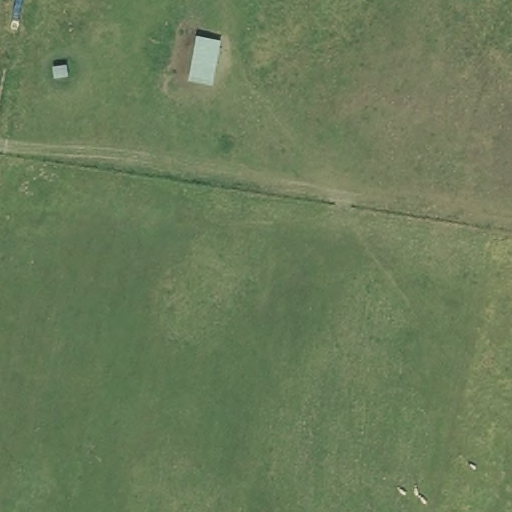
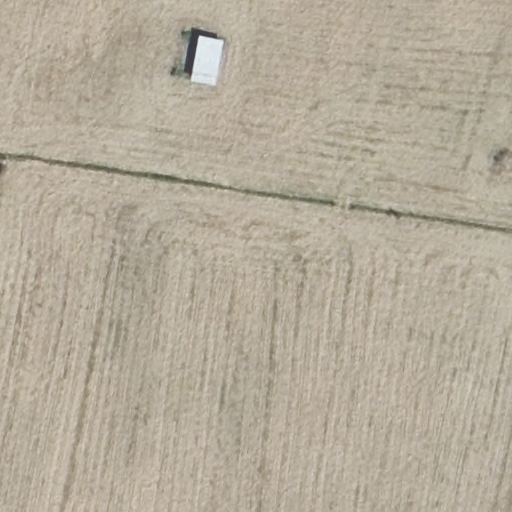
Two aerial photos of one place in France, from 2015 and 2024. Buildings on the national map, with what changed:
unchanged [(198,35),(219,40),(212,80),(190,75),(198,35)]

